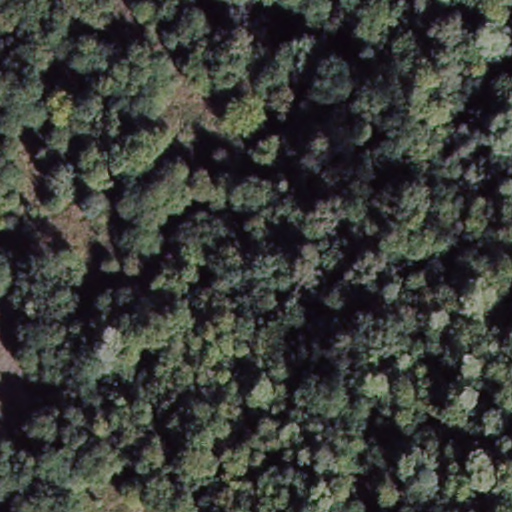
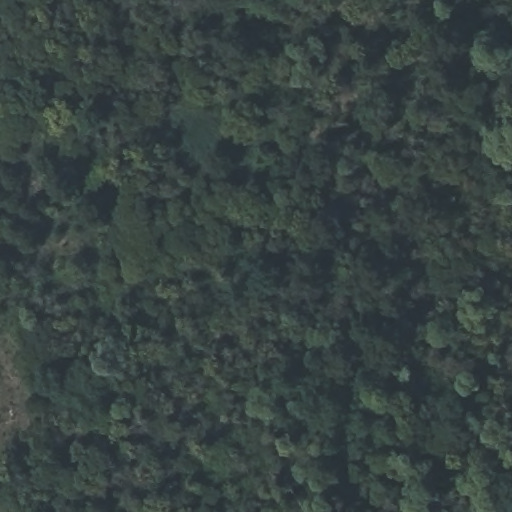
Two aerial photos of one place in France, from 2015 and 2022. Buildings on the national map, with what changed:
[]

